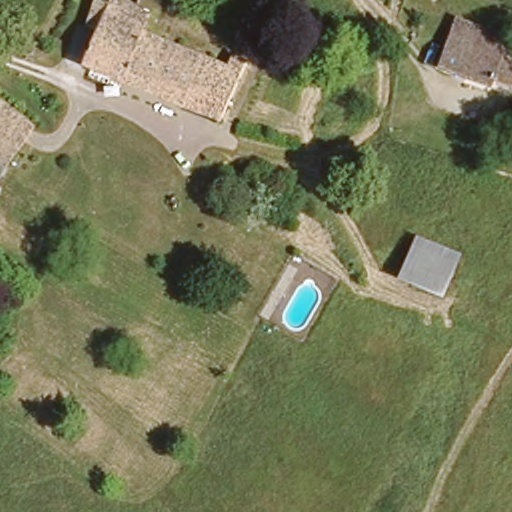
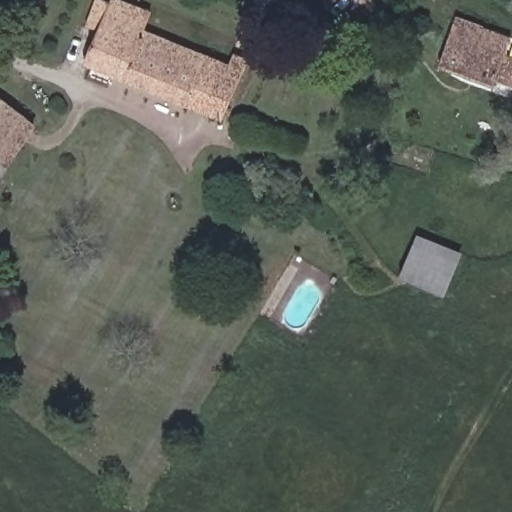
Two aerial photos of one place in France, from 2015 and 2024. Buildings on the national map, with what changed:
unchanged [(95,22),(86,19),(90,9),(79,4),(80,0),(129,0),(148,9),(141,24),(214,60),(205,75),(192,70),(178,100),(81,51),(95,22)]
unchanged [(477,52),(486,33),(506,41),(500,63),(507,65),(501,80),(485,76),(482,84),(422,60),(431,36),(477,52)]
unchanged [(233,69),(241,52),(255,59),(224,123),(178,100),(192,70),(205,75),(214,60),(233,69)]
unchanged [(0,171),(0,90),(38,114),(36,116),(0,171)]
unchanged [(441,289),(395,268),(413,233),(460,253),(441,289)]

